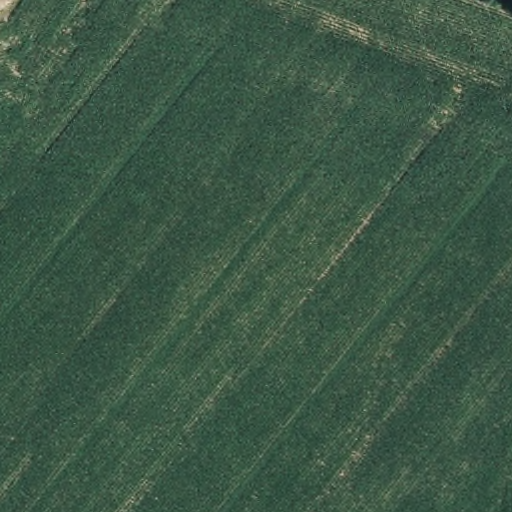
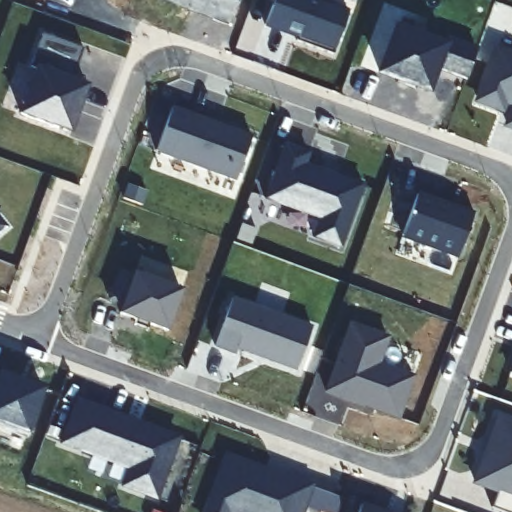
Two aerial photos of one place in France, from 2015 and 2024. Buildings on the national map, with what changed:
new [(227,26),(160,0),(236,0),(227,26)]
new [(273,0),(316,0),(347,12),(332,54),(263,27),(273,0)]
new [(443,43),(446,37),(477,47),(465,80),(440,71),(430,95),(376,75),(394,25),(443,43)]
new [(29,67),(41,35),(82,50),(71,80),(35,67),(34,70),(29,67)]
new [(495,45),(512,51),(512,131),(502,127),(510,107),(507,106),(502,116),(472,103),(495,45)]
new [(70,135),(17,115),(34,70),(35,67),(71,80),(88,87),(70,135)]
new [(155,154),(172,107),(251,136),(235,182),(155,154)]
new [(285,143),(310,153),(307,164),(364,185),(341,249),(312,239),(318,221),(263,200),(285,143)]
new [(417,192),(473,213),(457,259),(400,239),(417,192)]
new [(0,232),(0,219),(6,227),(0,232)]
new [(133,272),(182,291),(167,332),(118,314),(133,272)]
new [(232,297),(312,327),(295,372),(237,350),(234,356),(213,348),(232,297)]
new [(348,322),(389,337),(380,364),(415,376),(400,420),(323,393),(348,322)]
new [(508,373),(512,364),(512,375),(508,373)]
new [(0,372),(46,388),(29,436),(0,425),(0,372)]
new [(155,502),(118,487),(125,470),(57,444),(75,400),(180,438),(155,502)]
new [(504,512),(492,507),(498,493),(471,484),(497,413),(512,420),(512,512),(504,512)]
new [(316,512),(305,509),(304,512),(200,512),(223,452),(313,486),(312,489),(342,500),(336,512),(316,512)]
new [(378,512),(358,512),(360,506),(378,512)]

